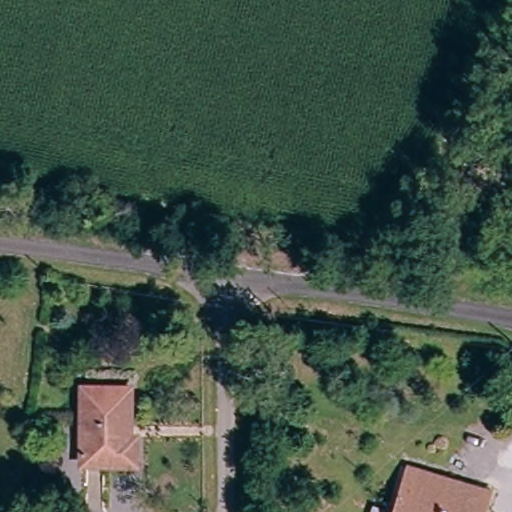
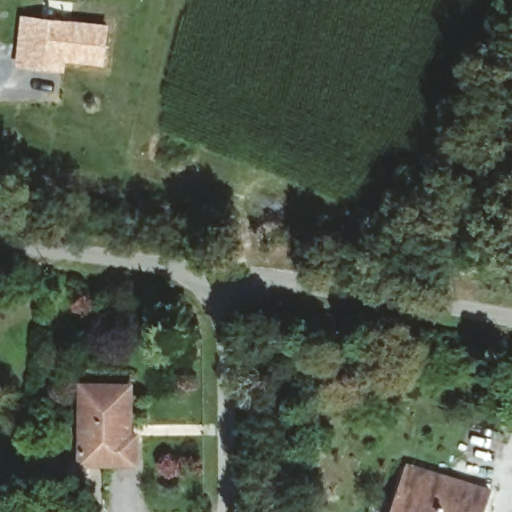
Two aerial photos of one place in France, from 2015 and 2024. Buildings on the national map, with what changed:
new [(20,13),(110,23),(106,67),(66,62),(64,72),(13,66),(20,13)]
unchanged [(130,377),(130,432),(139,432),(138,462),(83,462),(83,377),(130,377)]
unchanged [(395,512),(408,464),(492,489),(487,512),(395,512)]

